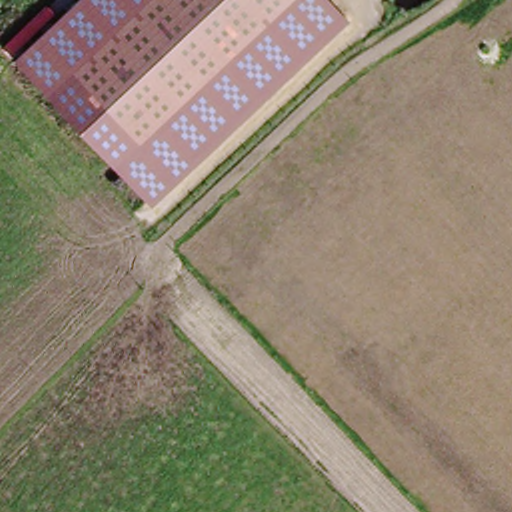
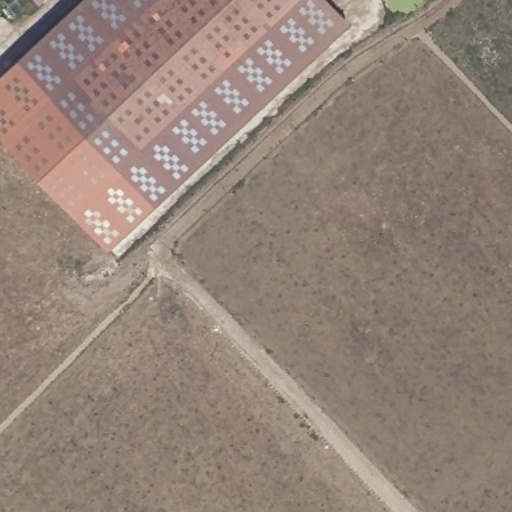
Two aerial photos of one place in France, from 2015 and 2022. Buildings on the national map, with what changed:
unchanged [(86,64),(70,79),(135,146),(177,106),(290,0),(335,0),(353,20),(148,206),(14,61),(78,0),(153,0),(86,64)]
new [(38,3),(36,0),(41,0),(38,3)]
unchanged [(135,146),(70,79),(153,0),(290,0),(135,146)]
new [(150,209),(107,249),(0,134),(0,73),(14,61),(148,206),(150,209)]

